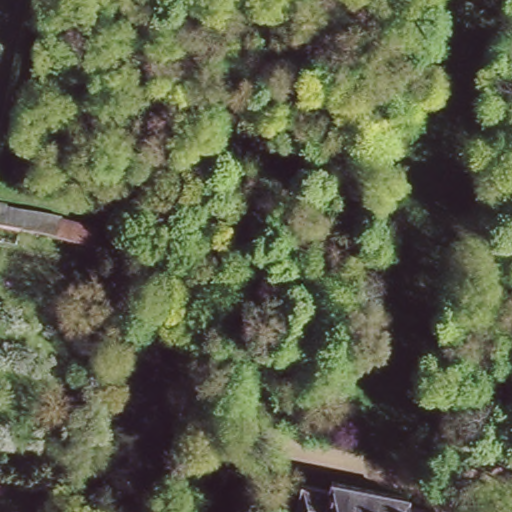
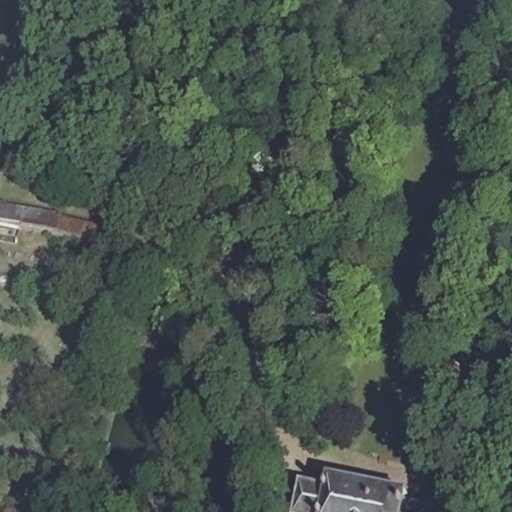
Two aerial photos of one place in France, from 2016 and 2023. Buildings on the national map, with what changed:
unchanged [(120,228),(118,236),(115,247),(0,222),(0,201),(120,228)]
unchanged [(301,486),(329,493),(333,477),(354,482),(411,495),(408,509),(423,512),(294,512),(301,486)]

